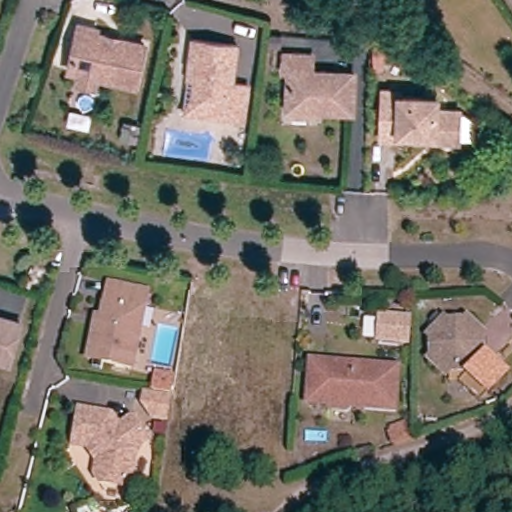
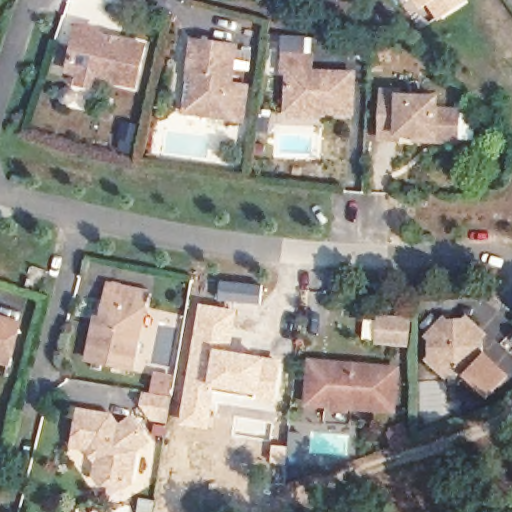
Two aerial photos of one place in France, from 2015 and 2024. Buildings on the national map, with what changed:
new [(427,6),(419,11),(412,0),(467,0),(437,20),(427,6)]
unchanged [(82,88),(84,74),(74,71),(82,25),(99,28),(97,34),(145,46),(139,86),(100,80),(98,91),(82,88)]
unchanged [(235,74),(251,77),(246,121),(191,114),(185,109),(194,101),(196,82),(188,81),(195,38),(236,45),(235,74)]
unchanged [(350,78),(347,117),(317,116),(317,126),(287,126),(289,76),(282,76),(282,61),(315,62),(319,76),(350,78)]
unchanged [(421,136),(400,135),(401,142),(382,141),(383,93),(402,93),(403,102),(439,103),(438,115),(462,116),(461,149),(422,145),(421,136)]
new [(217,279),(262,285),(260,305),(215,297),(217,279)]
unchanged [(84,356),(91,320),(101,322),(106,281),(146,290),(129,366),(84,356)]
new [(191,353),(200,304),(237,311),(230,350),(282,360),(275,405),(215,391),(210,430),(180,424),(191,353)]
unchanged [(0,362),(0,313),(17,317),(10,346),(5,364),(0,362)]
unchanged [(397,321),(396,348),(363,345),(366,318),(397,321)]
unchanged [(485,344),(484,367),(463,385),(431,382),(411,362),(412,340),(434,323),(467,325),(485,344)]
unchanged [(380,415),(341,410),(335,417),(322,416),(318,408),(301,406),(304,364),(383,372),(380,415)]
unchanged [(150,388),(152,374),(166,377),(164,390),(150,388)]
unchanged [(163,422),(147,420),(139,409),(141,397),(167,401),(163,422)]
unchanged [(146,442),(137,446),(131,482),(116,490),(96,485),(91,477),(92,462),(87,453),(68,448),(75,413),(110,420),(114,431),(131,421),(146,442)]
unchanged [(397,434),(381,441),(376,428),(392,422),(397,434)]
unchanged [(136,510),(136,512),(130,512),(136,510)]

